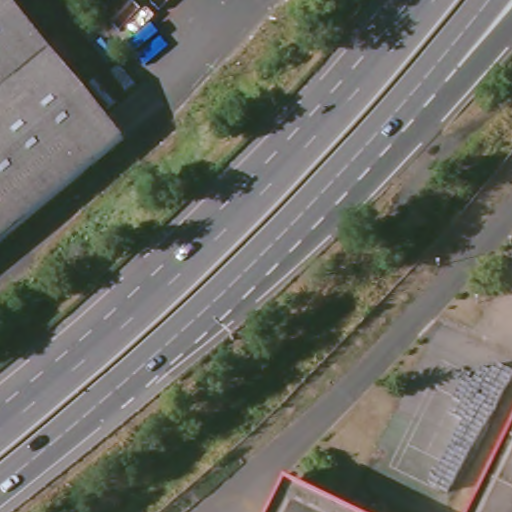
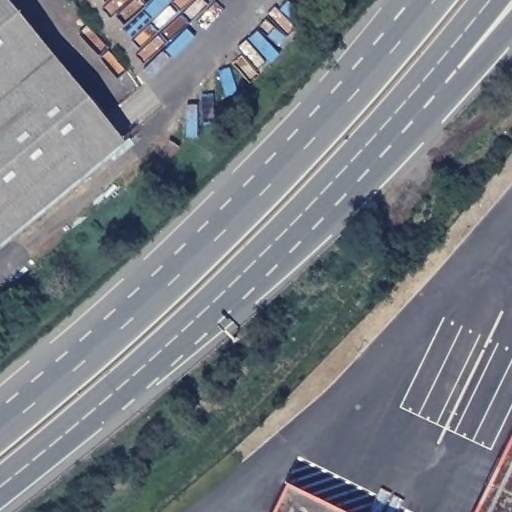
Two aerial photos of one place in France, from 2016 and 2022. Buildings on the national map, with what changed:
unchanged [(119,138),(0,234),(0,0),(7,0),(119,138)]
unchanged [(512,512),(464,512),(512,414),(512,512)]
unchanged [(262,512),(281,473),(336,502),(357,512),(262,512)]

